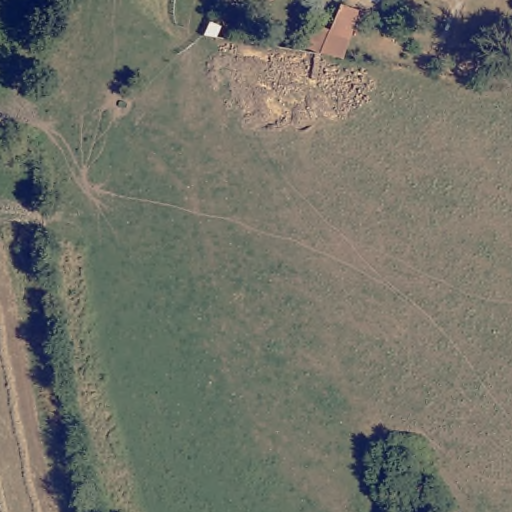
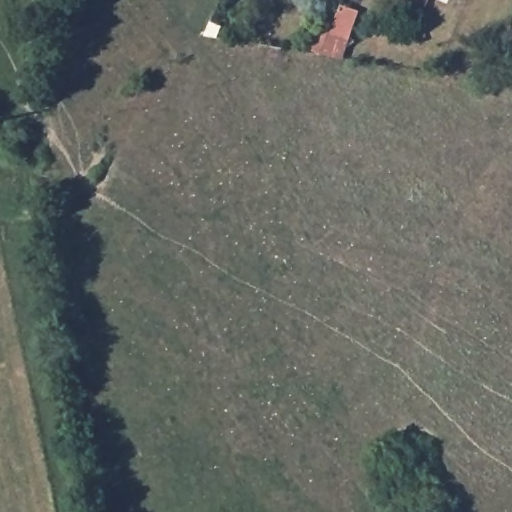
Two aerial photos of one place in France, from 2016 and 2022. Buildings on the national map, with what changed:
unchanged [(317,25),(340,35),(332,53),(309,43),(317,25)]

